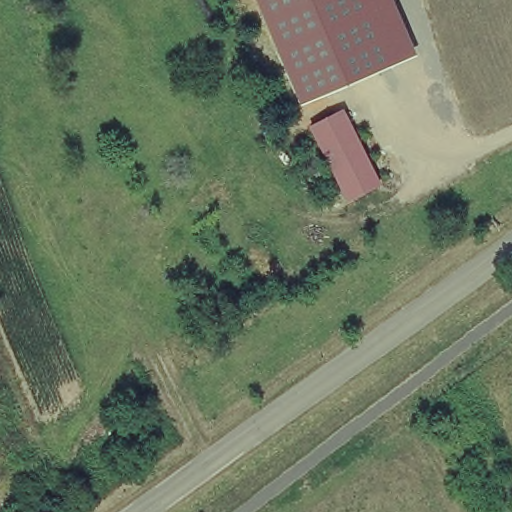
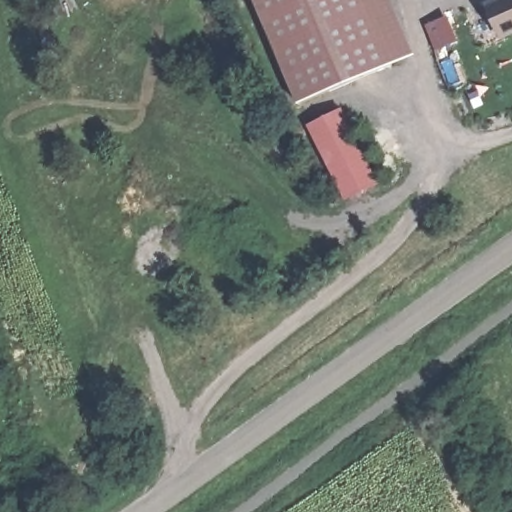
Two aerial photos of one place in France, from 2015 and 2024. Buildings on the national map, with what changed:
unchanged [(303,104),(258,0),(398,0),(420,54),(303,104)]
new [(483,3),(489,0),(512,0),(512,34),(499,40),(483,3)]
unchanged [(305,125),(349,106),(383,178),(341,201),(305,125)]

